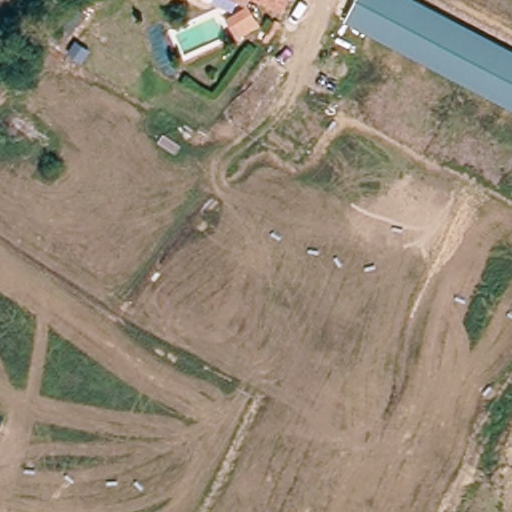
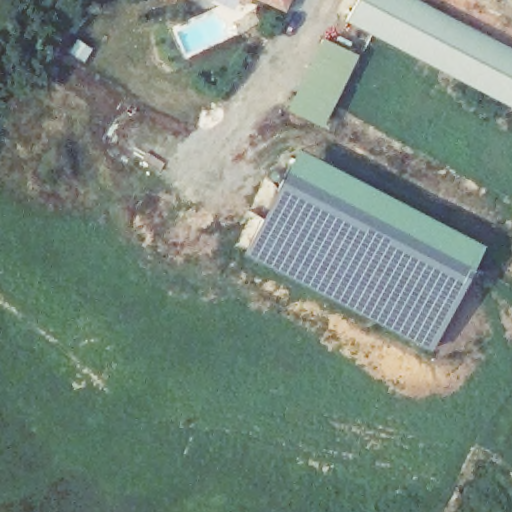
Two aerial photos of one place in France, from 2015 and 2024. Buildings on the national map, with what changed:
unchanged [(261,0),(291,0),(285,12),(261,0)]
unchanged [(347,20),(356,0),(413,0),(512,50),(512,109),(347,20)]
unchanged [(237,39),(226,18),(248,5),(262,25),(237,39)]
new [(321,40),(350,54),(326,99),(298,84),(321,40)]
new [(282,175),(465,269),(424,351),(241,256),(282,175)]
demolished [(0,429),(0,413),(5,415),(0,429)]

